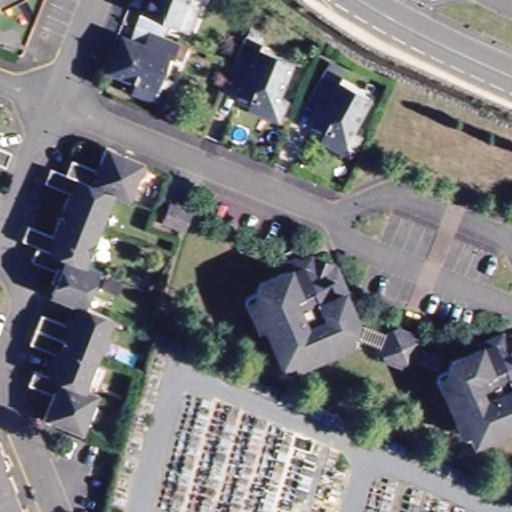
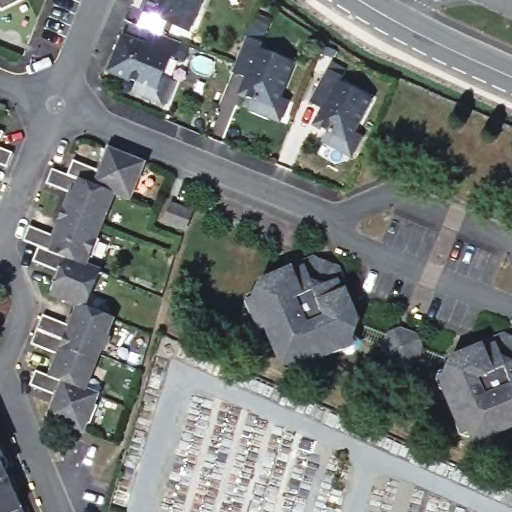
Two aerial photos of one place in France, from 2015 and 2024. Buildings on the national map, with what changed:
unchanged [(1,10),(0,8),(0,0),(27,0),(1,10)]
unchanged [(195,7),(188,25),(143,7),(147,0),(198,0),(195,7)]
unchanged [(282,115),(273,111),(251,102),(255,93),(241,86),(247,71),(233,65),(236,58),(239,50),(249,29),(264,35),(262,40),(297,55),(282,89),(292,94),(282,115)]
unchanged [(167,82),(158,104),(127,91),(130,84),(103,71),(117,36),(138,45),(144,30),(152,32),(175,42),(169,59),(163,57),(155,77),(167,82)]
unchanged [(360,147),(351,144),(330,135),(334,126),(320,120),(326,105),(310,97),(313,90),(325,61),(344,70),(341,75),(374,89),(360,122),(369,126),(360,147)]
unchanged [(33,370),(48,376),(53,365),(47,363),(51,352),(29,343),(40,315),(63,325),(66,316),(72,319),(78,305),(50,293),(55,282),(49,280),(54,270),(31,260),(37,246),(21,239),(28,225),(50,234),(55,221),(61,224),(68,209),(63,206),(69,194),(45,182),(52,167),(68,174),(73,160),(96,170),(105,148),(111,150),(145,165),(128,201),(114,195),(84,266),(97,272),(84,308),(110,320),(79,390),(93,395),(77,430),(45,417),(39,415),(48,392),(25,383),(33,370)]
unchanged [(2,167),(0,166),(0,150),(8,154),(2,167)]
unchanged [(196,219),(189,237),(172,231),(179,213),(196,219)]
unchanged [(276,355),(270,340),(275,338),(270,326),(257,331),(251,314),(246,300),(254,297),(259,282),(273,277),(287,272),(283,262),(294,258),(300,260),(316,254),(331,260),(342,288),(350,291),(355,305),(348,307),(354,324),(349,337),(352,346),(340,351),(307,363),(293,368),(290,361),(276,355)]
unchanged [(419,340),(423,350),(417,366),(407,370),(391,363),(387,353),(393,337),(403,333),(419,340)]
unchanged [(439,393),(434,380),(444,376),(449,362),(461,357),(457,348),(470,343),(476,346),(504,334),(512,337),(512,435),(509,427),(498,432),(499,436),(482,443),(467,436),(457,440),(453,427),(439,393)]
unchanged [(8,480),(21,511),(18,512),(0,512),(0,451),(11,478),(8,480)]

